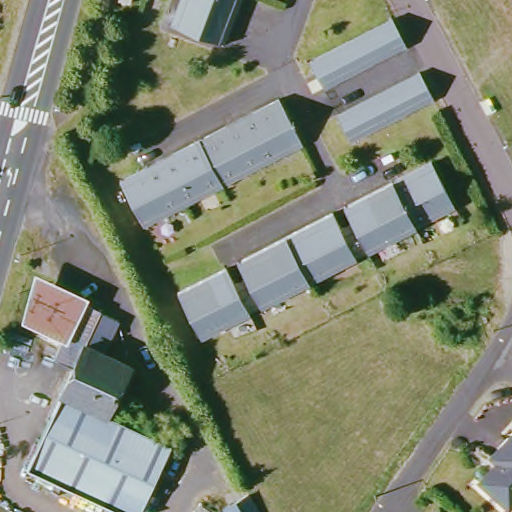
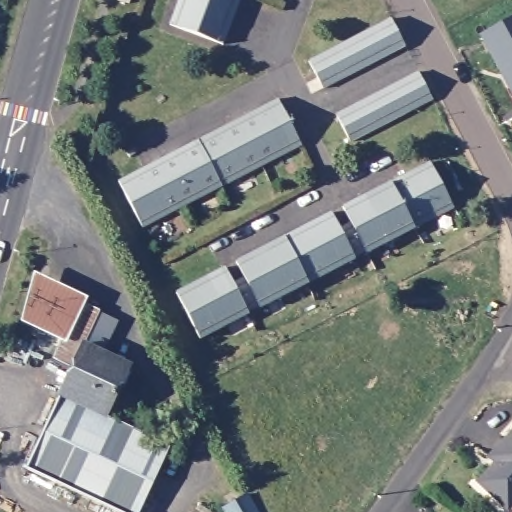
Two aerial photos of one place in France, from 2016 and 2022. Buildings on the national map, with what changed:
unchanged [(134,0),(132,5),(123,2),(124,0),(134,0)]
unchanged [(233,0),(217,44),(164,25),(174,0),(233,0)]
new [(512,14),(512,73),(509,67),(503,70),(482,31),(512,14)]
unchanged [(391,17),(404,44),(323,88),(309,62),(391,17)]
unchanged [(427,98),(345,141),(331,114),(413,71),(427,98)]
unchanged [(224,127),(251,113),(278,99),(301,145),(146,226),(146,227),(144,228),(119,182),(121,181),(144,169),(171,155),(224,127)]
unchanged [(449,206),(363,252),(361,249),(350,255),(351,258),(256,308),(255,305),(243,311),(245,314),(196,339),(191,330),(188,322),(183,312),(179,301),(174,292),(176,291),(218,269),(221,268),(229,284),(240,279),(231,262),(327,212),(335,227),(346,222),(338,206),(386,181),(399,174),(425,160),(449,206)]
unchanged [(25,323),(49,275),(85,294),(83,298),(60,341),(25,323)]
unchanged [(73,361),(55,352),(60,341),(83,298),(120,317),(106,343),(73,361)]
unchanged [(73,361),(106,343),(103,350),(131,365),(105,412),(169,447),(136,512),(116,512),(22,463),(74,362),(73,361)]
unchanged [(486,463),(489,467),(494,461),(485,453),(511,423),(512,424),(512,495),(503,505),(473,477),(486,463)]
unchanged [(243,499),(250,512),(220,512),(243,499)]

